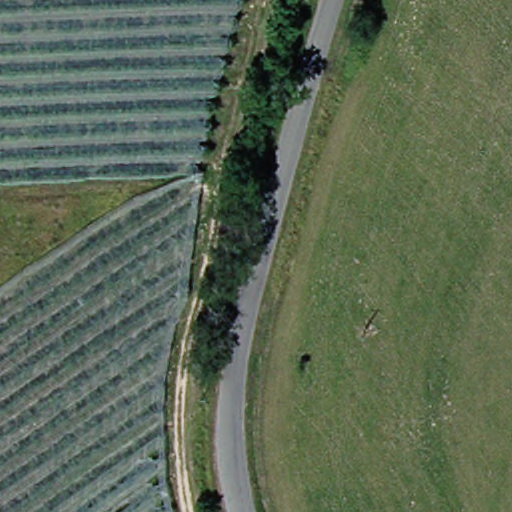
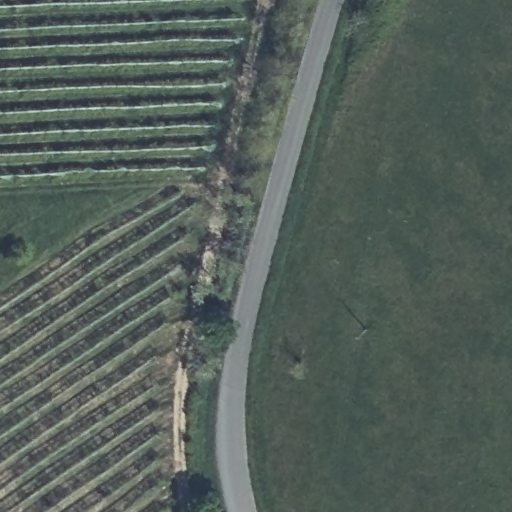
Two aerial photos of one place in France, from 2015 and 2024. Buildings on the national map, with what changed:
[]

